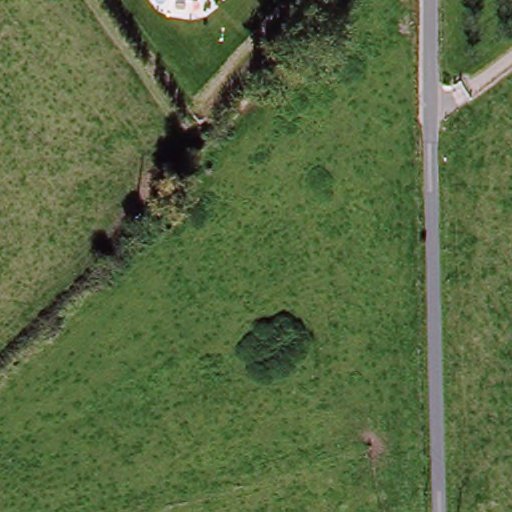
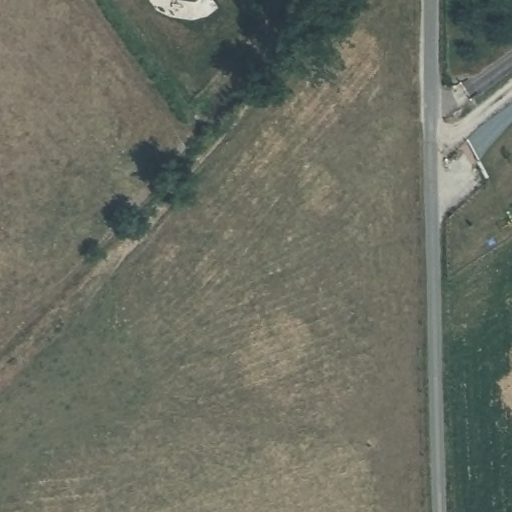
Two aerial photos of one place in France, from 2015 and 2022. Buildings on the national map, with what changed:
unchanged [(196,1),(189,0),(197,0),(196,1)]

